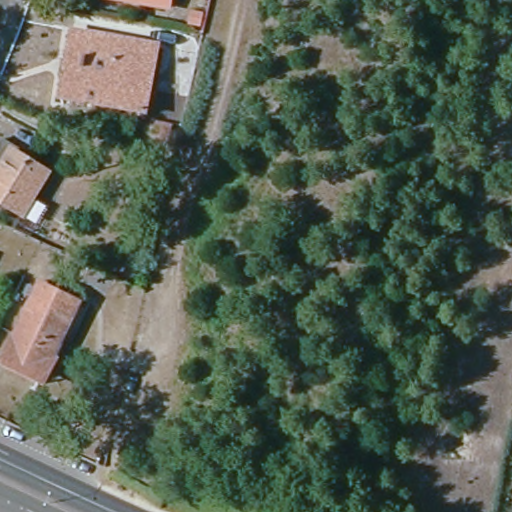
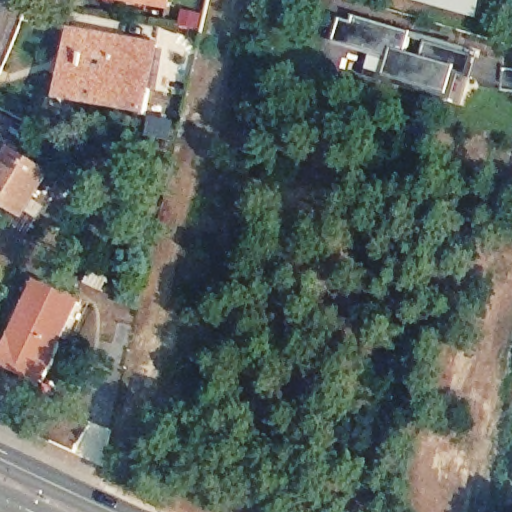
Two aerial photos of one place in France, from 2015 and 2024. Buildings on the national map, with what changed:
new [(411,0),(489,0),(484,22),(411,0)]
new [(389,75),(394,58),(337,42),(345,18),(357,21),(358,15),(417,32),(412,51),(428,56),(432,41),(433,36),(483,51),(482,56),(477,76),(462,72),(456,94),(454,100),(369,76),(371,70),(389,75)]
unchanged [(159,46),(152,89),(149,113),(66,99),(69,75),(76,32),(92,35),(144,43),(159,46)]
unchanged [(25,214),(0,199),(0,178),(16,153),(50,175),(25,214)]
unchanged [(80,304),(55,358),(59,360),(48,380),(9,362),(45,287),(80,304)]

